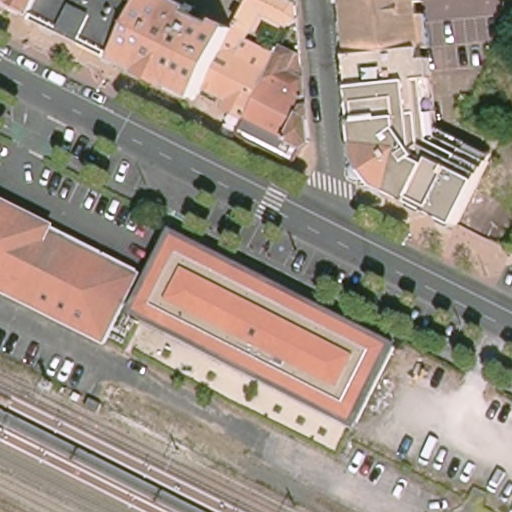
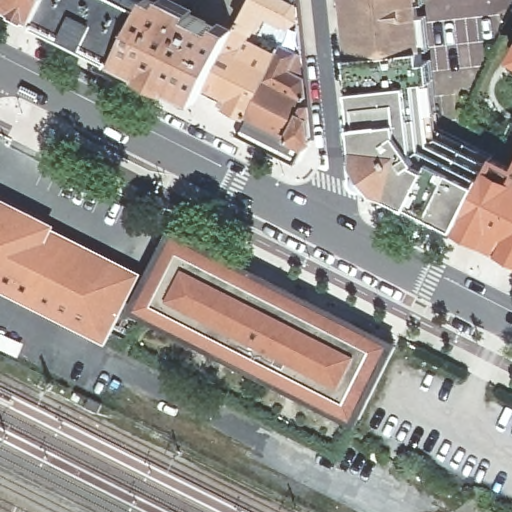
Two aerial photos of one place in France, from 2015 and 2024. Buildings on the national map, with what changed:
unchanged [(43,16),(10,0),(51,0),(43,16)]
unchanged [(51,0),(151,0),(150,1),(137,26),(122,56),(109,49),(43,16),(51,0)]
unchanged [(297,19),(290,27),(260,12),(251,28),(239,22),(250,0),(292,0),(295,1),(297,19)]
unchanged [(295,1),(292,0),(295,0),(295,1)]
unchanged [(361,148),(358,126),(345,0),(418,0),(430,121),(427,122),(434,140),(436,140),(486,165),(473,194),(457,224),(391,191),(365,178),(361,148)]
unchanged [(137,26),(150,1),(161,6),(164,2),(177,8),(148,69),(122,56),(137,26)]
unchanged [(177,8),(232,34),(206,89),(202,96),(148,69),(177,8)]
unchanged [(245,117),(226,108),(229,101),(206,89),(232,34),(239,22),(251,28),(241,47),(245,48),(249,41),(278,55),(246,118),(245,117)]
unchanged [(249,119),(246,118),(278,55),(283,45),(301,54),(311,142),(305,147),(249,119)]
unchanged [(296,164),(240,136),(249,119),(305,147),(296,164)]
new [(457,224),(473,194),(486,165),(492,153),(512,165),(512,253),(457,224)]
unchanged [(0,204),(47,228),(46,229),(137,275),(102,345),(0,292),(0,204)]
unchanged [(396,341),(354,424),(129,311),(171,228),(396,341)]

